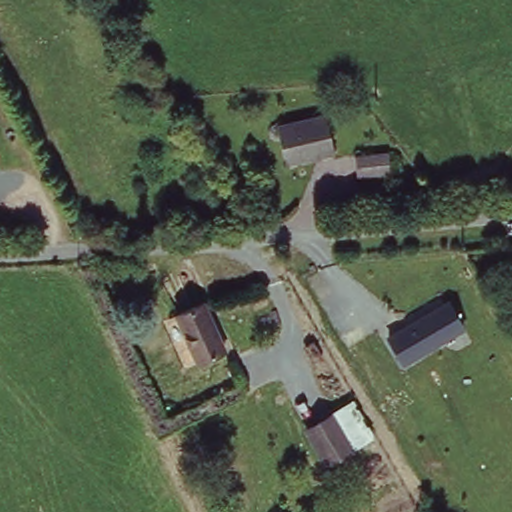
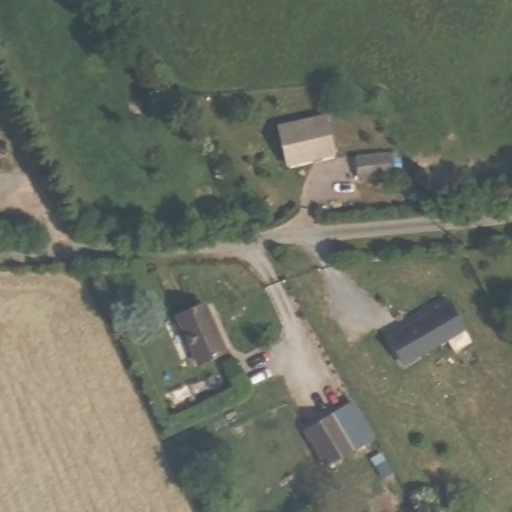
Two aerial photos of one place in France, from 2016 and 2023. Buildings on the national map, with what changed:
unchanged [(278,127),(325,115),(333,152),(286,163),(278,127)]
unchanged [(387,152),(390,172),(357,176),(355,156),(387,152)]
unchanged [(182,315),(208,302),(230,351),(203,362),(182,315)]
unchanged [(453,302),(468,327),(409,362),(394,337),(453,302)]
unchanged [(299,430),(325,413),(344,402),(365,437),(319,465),(299,430)]

